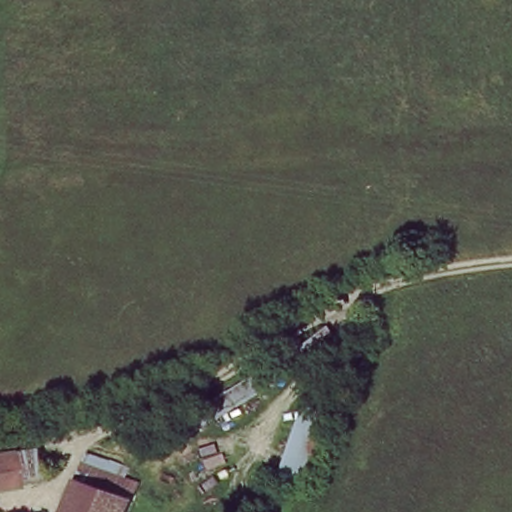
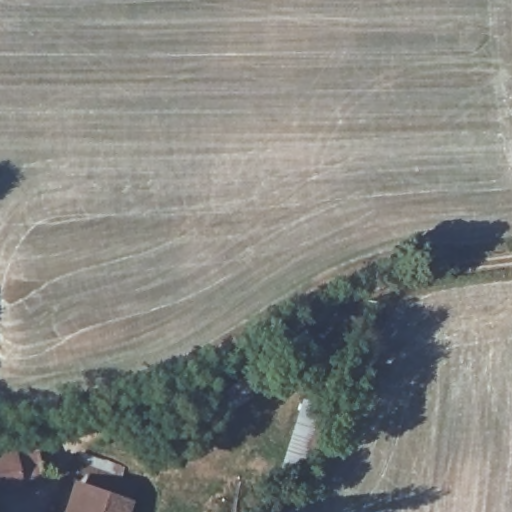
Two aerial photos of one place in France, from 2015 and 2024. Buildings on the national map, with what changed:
unchanged [(300,397),(326,403),(306,482),(275,475),(300,397)]
unchanged [(12,490),(0,491),(0,449),(8,448),(12,490)]
unchanged [(82,450),(128,461),(121,473),(138,481),(133,500),(128,512),(57,512),(69,477),(82,450)]

